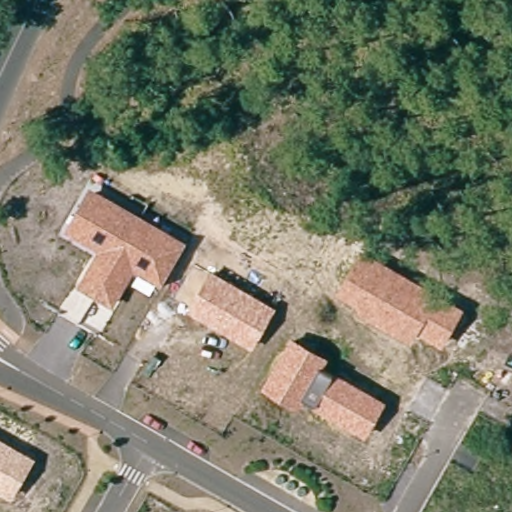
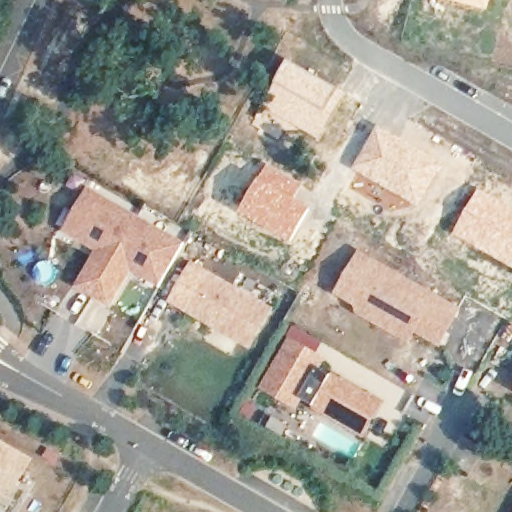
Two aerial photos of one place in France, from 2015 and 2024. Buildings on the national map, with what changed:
new [(487,12),(445,0),(490,0),(487,12)]
new [(287,61),(340,90),(339,92),(340,93),(334,105),(337,107),(317,141),(258,111),(287,61)]
new [(376,126),(443,164),(417,209),(351,170),(376,126)]
new [(267,164),(305,185),(298,197),(314,207),(291,245),(239,215),(267,164)]
unchanged [(97,251),(65,233),(90,188),(187,242),(164,287),(134,271),(116,307),(77,287),(97,251)]
new [(512,208),(512,270),(450,235),(478,189),(512,208)]
unchanged [(463,310),(443,348),(418,335),(412,346),(357,317),(356,306),(337,295),(361,252),(463,310)]
unchanged [(276,309),(253,351),(188,313),(211,272),(276,309)]
unchanged [(329,359),(325,369),(386,402),(365,439),(315,411),(317,406),(304,400),(299,410),(261,389),(290,338),(329,359)]
unchanged [(36,458),(13,501),(0,494),(0,439),(36,458)]

